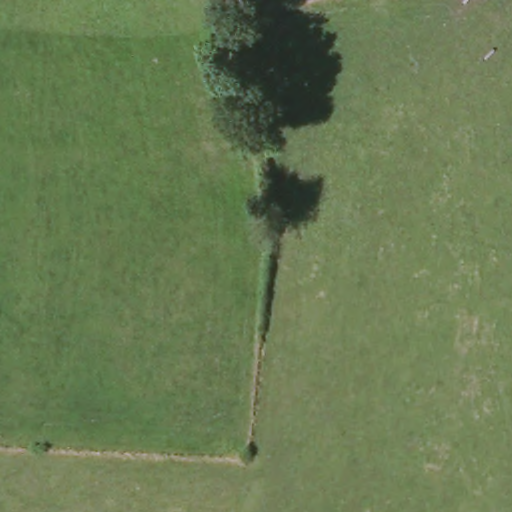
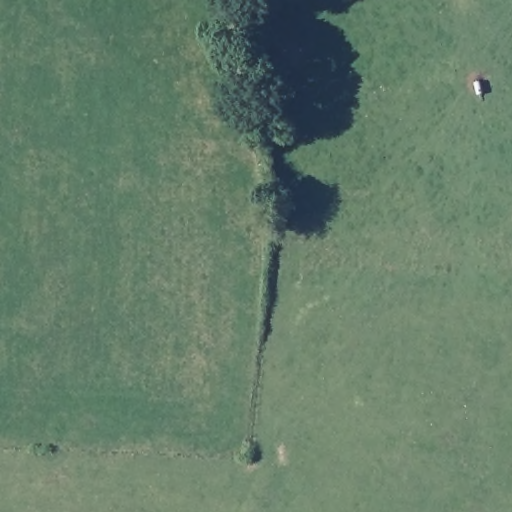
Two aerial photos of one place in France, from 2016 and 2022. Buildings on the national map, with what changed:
[]

